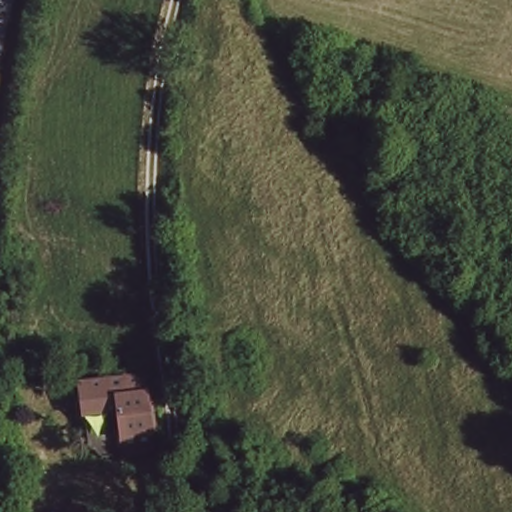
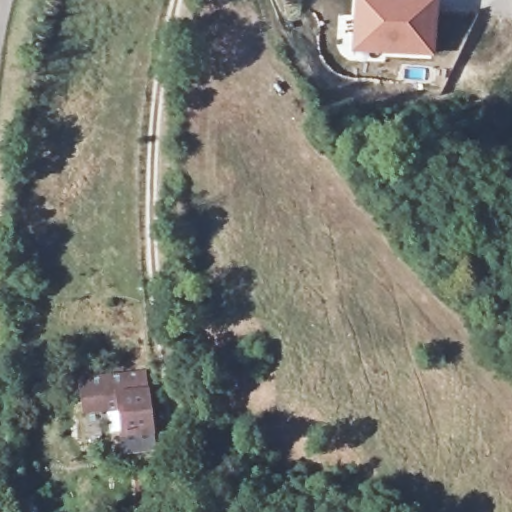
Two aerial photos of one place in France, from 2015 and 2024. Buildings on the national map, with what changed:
new [(438,0),(434,57),(347,54),(352,0),(438,0)]
unchanged [(140,366),(150,440),(120,444),(113,399),(79,404),(76,373),(140,366)]

